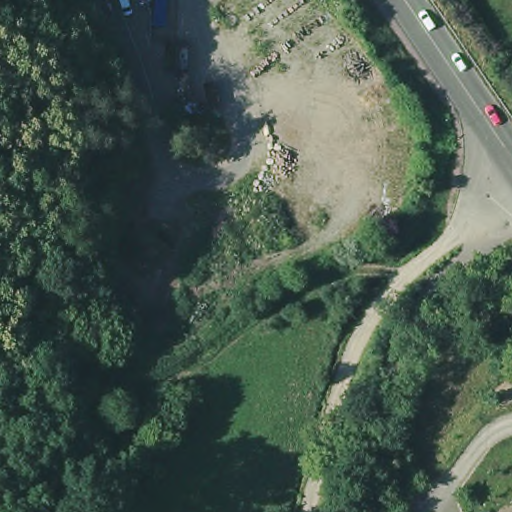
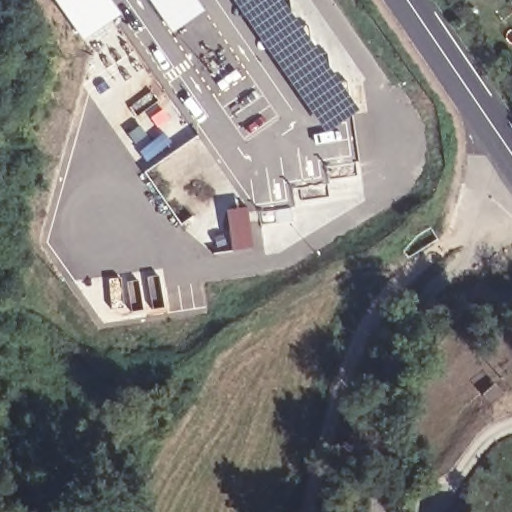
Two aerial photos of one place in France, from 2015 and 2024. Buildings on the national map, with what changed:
new [(121,17),(86,41),(57,0),(110,0),(121,17)]
new [(208,12),(174,34),(150,0),(199,0),(208,12)]
new [(233,0),(281,0),(359,111),(326,133),(233,0)]

